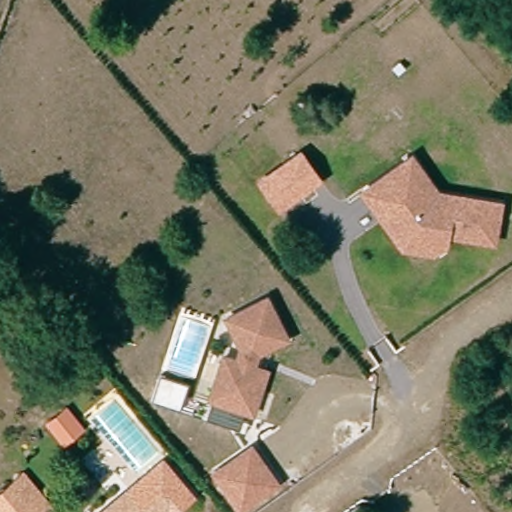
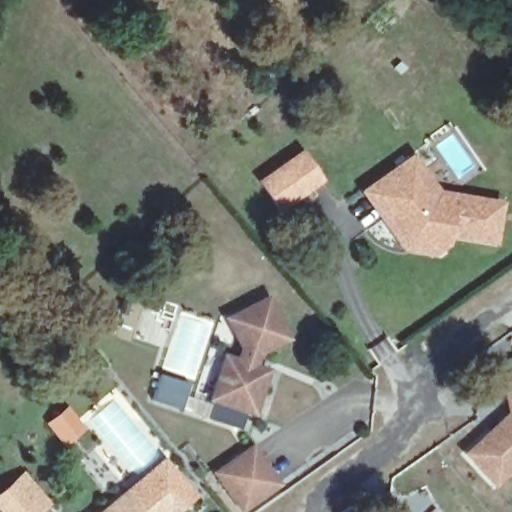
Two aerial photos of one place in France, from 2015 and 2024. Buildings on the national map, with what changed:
unchanged [(303,154),(322,181),(279,209),(261,182),(303,154)]
unchanged [(365,192),(389,176),(415,159),(425,174),(440,195),(454,197),(502,207),(495,245),(447,236),(445,246),(432,254),(425,253),(404,249),(383,219),(365,192)]
unchanged [(249,409),(207,395),(222,353),(235,358),(240,345),(226,316),(266,297),(285,336),(255,350),(250,363),(263,368),(249,409)]
unchanged [(176,404),(148,394),(157,368),(185,378),(176,404)]
new [(461,452),(505,411),(497,373),(512,370),(512,469),(492,487),(461,452)]
unchanged [(240,510),(215,473),(251,449),(276,486),(240,510)]
unchanged [(170,464),(181,478),(195,496),(176,512),(109,512),(142,485),(170,464)]
unchanged [(12,482),(23,473),(48,503),(37,512),(0,512),(0,491),(12,482)]

